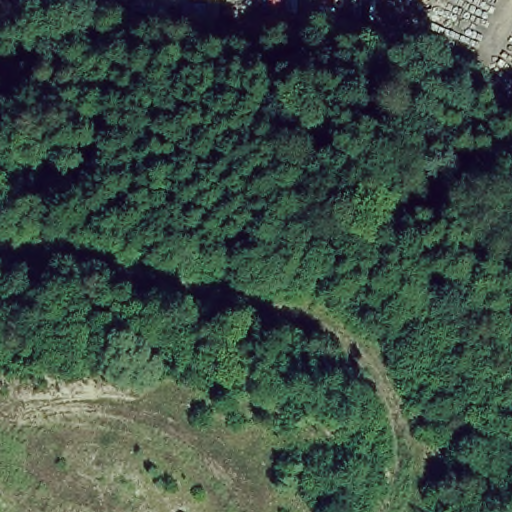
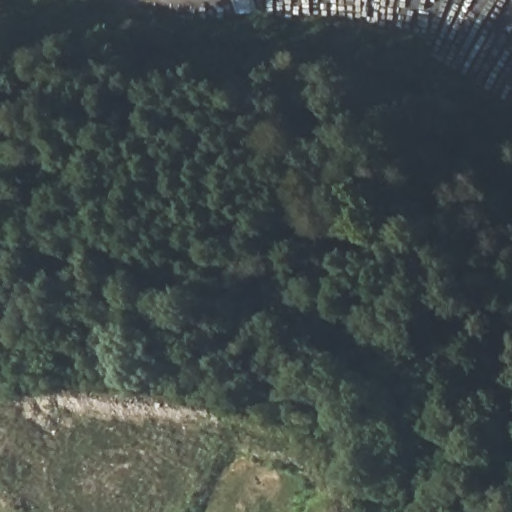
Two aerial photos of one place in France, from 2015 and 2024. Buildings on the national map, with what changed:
[]

